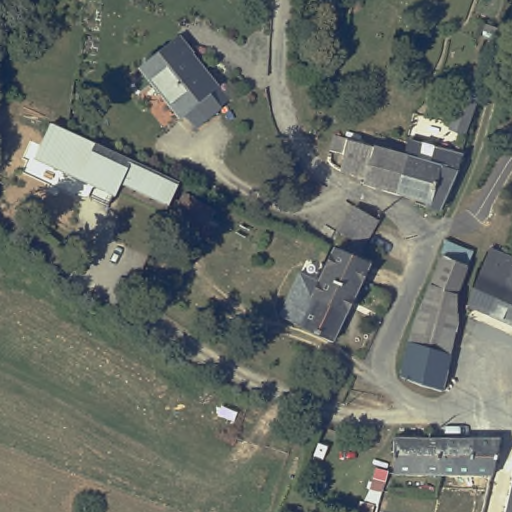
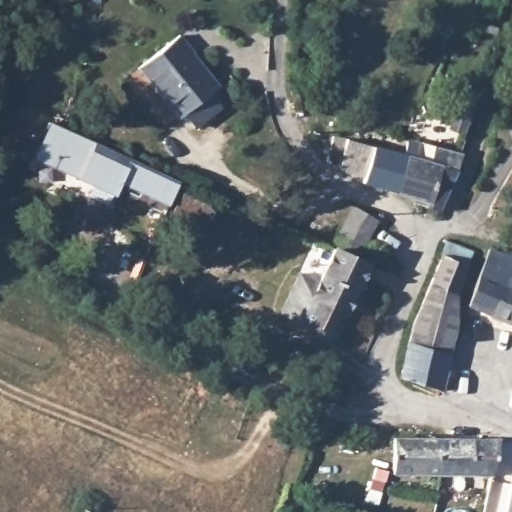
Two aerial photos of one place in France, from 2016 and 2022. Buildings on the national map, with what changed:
unchanged [(181,35),(221,83),(182,116),(141,67),(181,35)]
unchanged [(66,129),(178,179),(168,203),(155,198),(118,182),(108,207),(87,198),(92,186),(36,156),(52,119),(66,129)]
unchanged [(347,153),(333,148),(336,135),(410,155),(400,192),(367,182),(369,177),(344,170),(347,153)]
unchanged [(420,198),(400,192),(410,155),(414,140),(462,153),(457,169),(462,171),(444,210),(432,206),(419,202),(420,198)]
unchanged [(337,240),(343,235),(341,233),(354,206),(381,221),(368,244),(376,249),(369,262),(338,249),(337,240)]
unchanged [(472,303),(493,246),(512,254),(512,322),(472,303)]
unchanged [(369,262),(372,264),(337,339),(285,314),(304,274),(324,282),(338,249),(369,262)]
unchanged [(440,399),(403,386),(412,334),(429,293),(442,264),(439,262),(444,250),(470,261),(465,274),(455,304),(455,331),(440,399)]
unchanged [(393,464),(393,450),(393,437),(499,438),(491,476),(393,473),(393,470),(393,464)]
unchanged [(373,476),(375,466),(388,469),(384,484),(381,484),(382,480),(373,477),(373,476)]
unchanged [(512,490),(512,512),(506,512),(512,490)]

